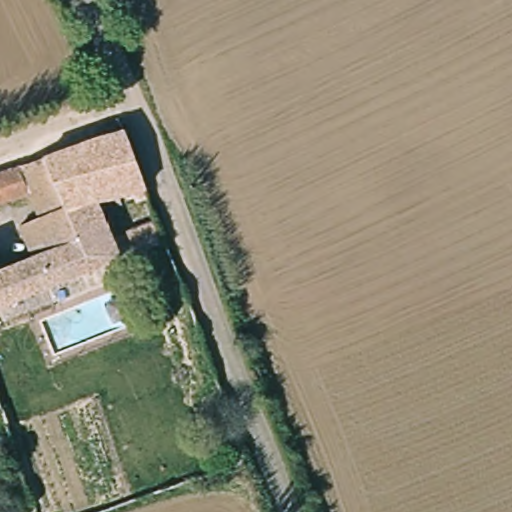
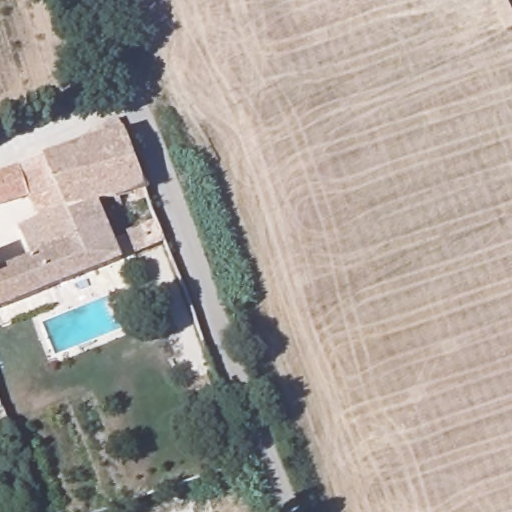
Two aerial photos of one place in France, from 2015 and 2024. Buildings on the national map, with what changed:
unchanged [(12,212),(32,205),(25,185),(0,193),(0,168),(122,127),(128,141),(140,171),(153,204),(108,218),(123,264),(0,307),(0,260),(25,252),(12,212)]

